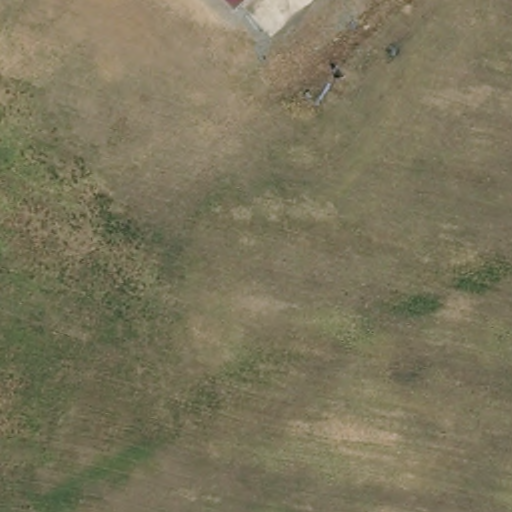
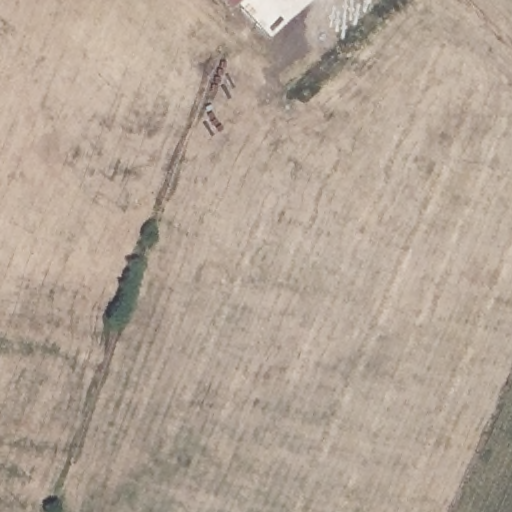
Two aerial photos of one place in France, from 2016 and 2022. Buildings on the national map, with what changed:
unchanged [(229,0),(242,0),(235,6),(229,0)]

